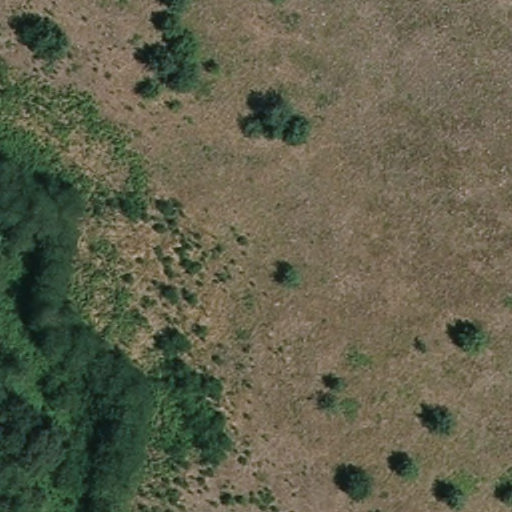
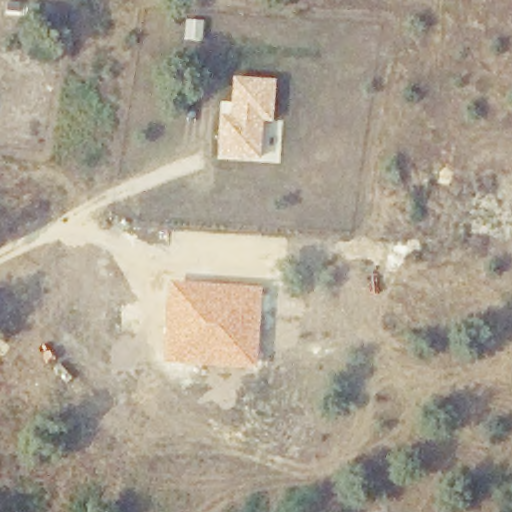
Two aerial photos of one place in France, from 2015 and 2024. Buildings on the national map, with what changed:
new [(221,101),(231,101),(234,75),(278,79),(275,123),(266,122),(263,160),(217,156),(221,101)]
new [(167,279),(265,287),(259,370),(162,365),(167,279)]

